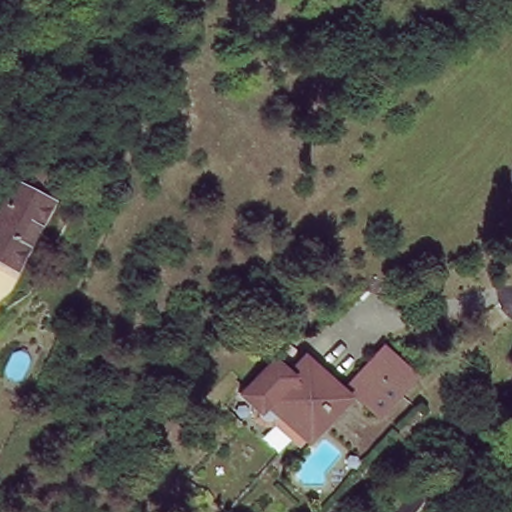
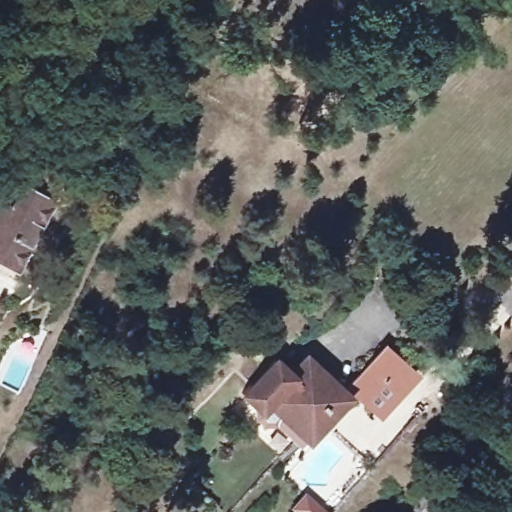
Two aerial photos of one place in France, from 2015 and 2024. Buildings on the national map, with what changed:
unchanged [(46,205),(11,270),(0,264),(0,200),(8,185),(46,205)]
unchanged [(363,378),(391,348),(420,375),(383,413),(355,386),(363,378)]
unchanged [(352,396),(313,440),(294,422),(292,425),(289,429),(286,432),(281,434),(277,435),(273,433),(269,432),(267,430),(264,427),(263,423),(262,421),(263,417),(264,413),(251,401),(257,394),(269,381),(283,366),(295,377),(298,380),(315,363),(321,368),(349,393),(352,396)]

